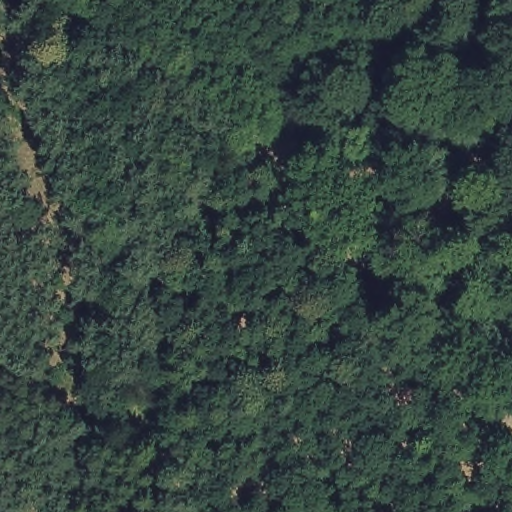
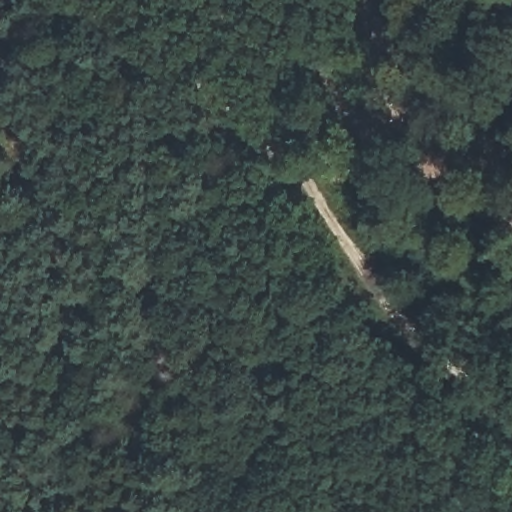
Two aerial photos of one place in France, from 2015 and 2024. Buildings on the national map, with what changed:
[]

